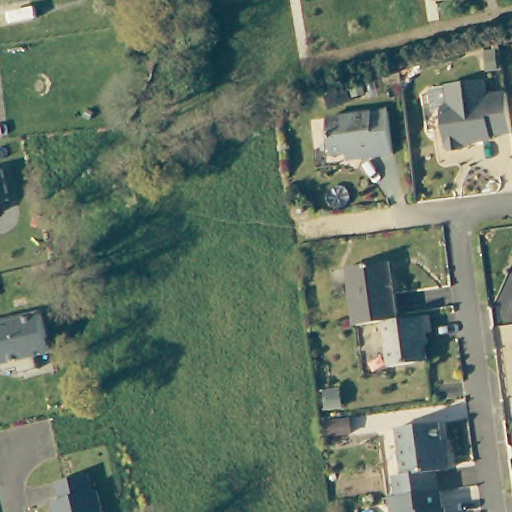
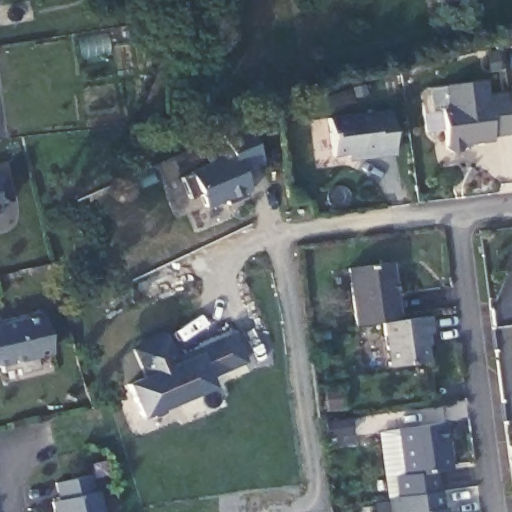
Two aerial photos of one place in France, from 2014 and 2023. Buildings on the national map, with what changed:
unchanged [(512,117),(512,127),(494,129),(494,137),(466,137),(466,145),(448,146),(443,103),(450,96),(450,82),(484,78),(485,89),(508,87),(512,117)]
unchanged [(393,150),(361,155),(359,151),(331,150),(325,116),(387,109),(393,150)]
new [(192,175),(190,170),(207,164),(205,159),(225,151),(220,139),(249,127),(263,160),(241,169),(249,190),(206,210),(198,194),(190,200),(182,179),(192,175)]
unchanged [(9,196),(0,198),(0,173),(3,172),(9,196)]
unchanged [(0,217),(0,213),(1,217),(0,217)]
unchanged [(349,265),(391,259),(400,317),(385,319),(358,322),(349,265)]
unchanged [(3,321),(41,312),(51,353),(36,357),(39,370),(19,375),(18,369),(3,372),(1,366),(0,366),(0,325),(4,325),(3,321)]
unchanged [(435,330),(427,331),(429,359),(390,363),(385,319),(400,317),(432,313),(435,330)]
new [(199,356),(197,348),(234,334),(247,362),(210,379),(199,356)]
new [(166,337),(178,365),(199,356),(214,387),(143,418),(129,386),(146,377),(135,350),(166,337)]
unchanged [(419,490),(395,493),(390,468),(403,465),(398,426),(439,420),(442,447),(449,448),(452,469),(436,472),(438,487),(419,490)]
unchanged [(53,502),(61,501),(56,483),(88,476),(92,492),(98,492),(102,512),(55,512),(53,502)]
unchanged [(395,493),(419,490),(438,487),(440,487),(444,504),(447,504),(448,512),(392,512),(390,494),(395,493)]

